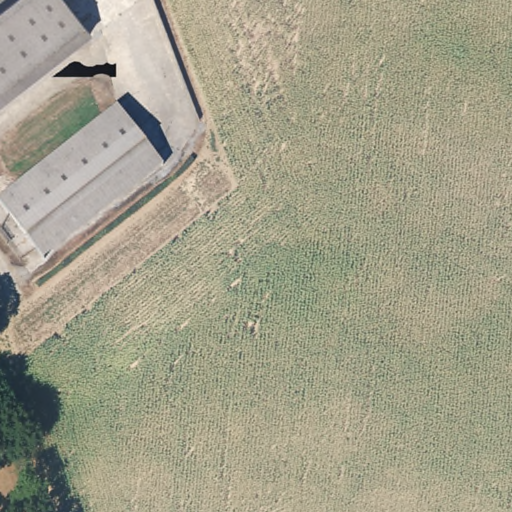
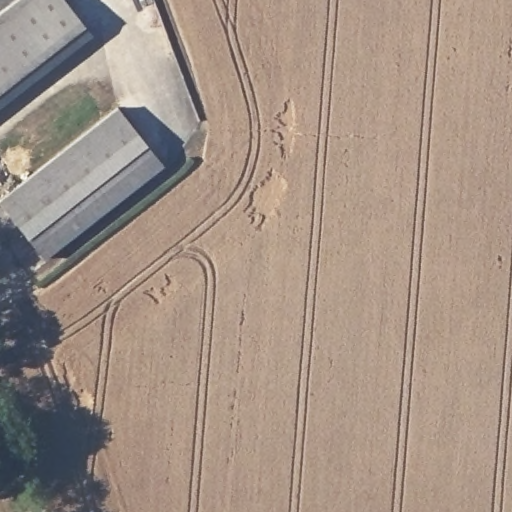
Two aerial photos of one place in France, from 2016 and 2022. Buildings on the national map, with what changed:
unchanged [(0,22),(28,0),(63,0),(86,29),(0,98),(0,22)]
unchanged [(161,167),(43,261),(0,207),(0,197),(114,107),(161,167)]

